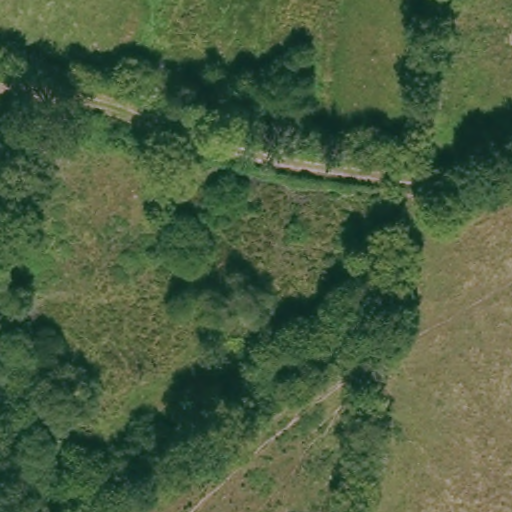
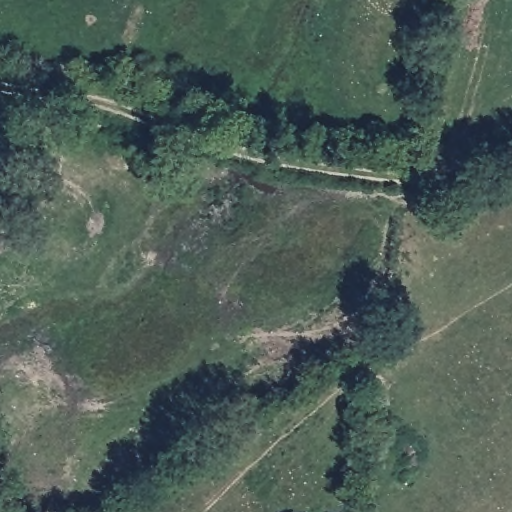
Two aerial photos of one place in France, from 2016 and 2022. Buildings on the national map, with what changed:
[]

